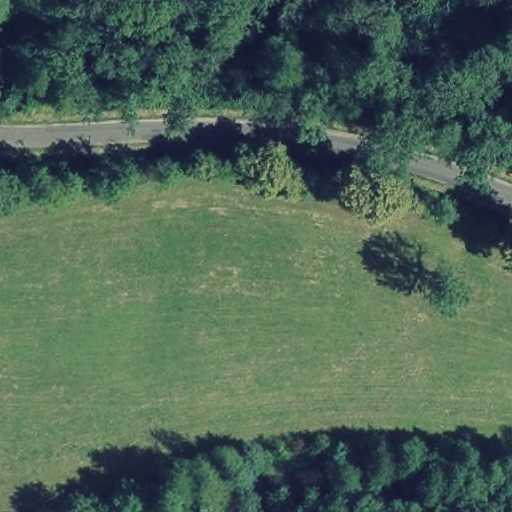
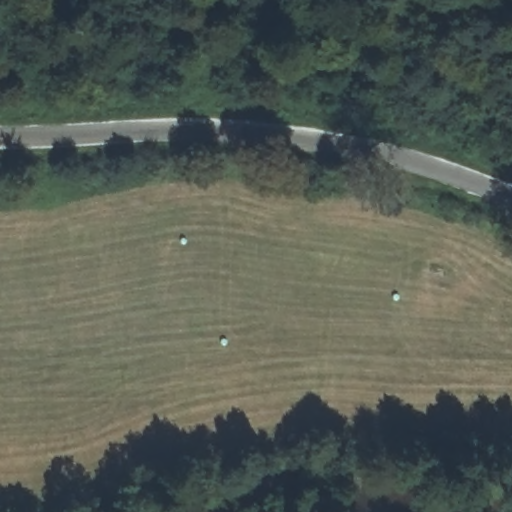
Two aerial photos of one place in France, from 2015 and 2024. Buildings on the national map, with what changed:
[]

